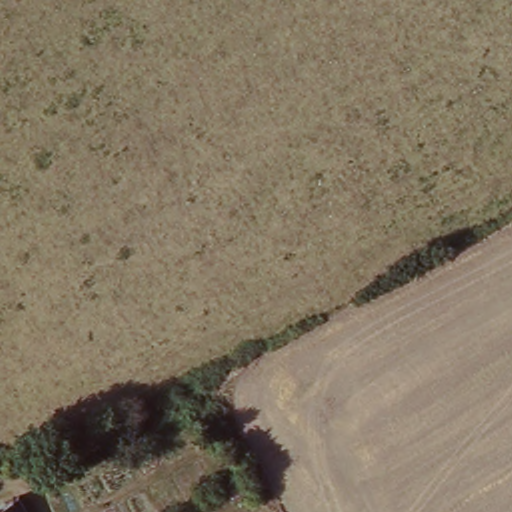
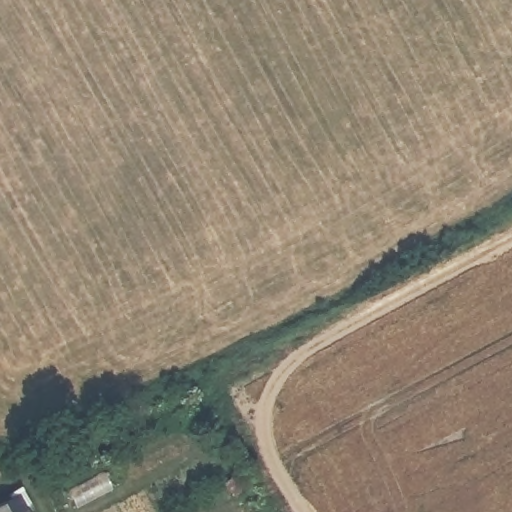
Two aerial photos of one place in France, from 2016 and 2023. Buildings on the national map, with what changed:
unchanged [(27,512),(5,512),(22,502),(27,512)]

